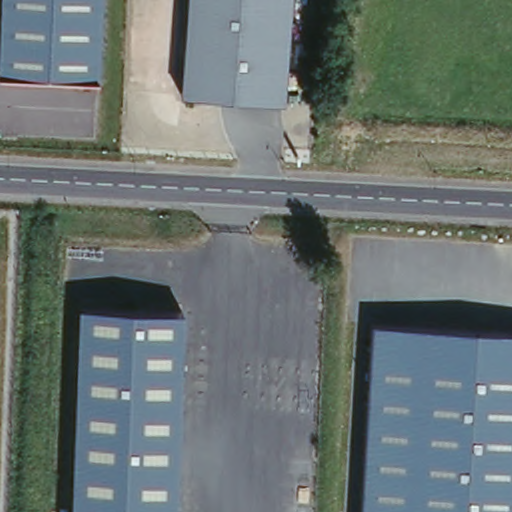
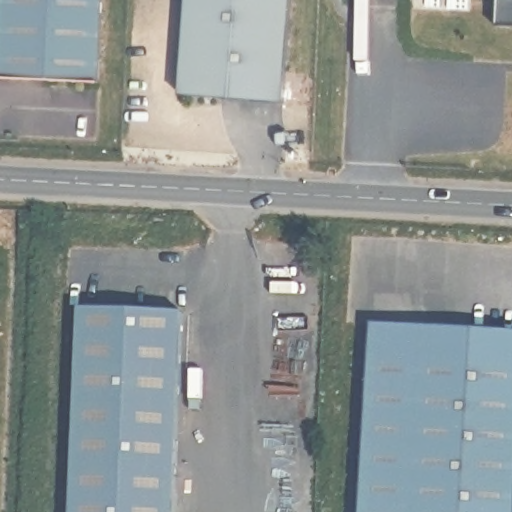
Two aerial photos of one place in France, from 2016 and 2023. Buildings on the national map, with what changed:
unchanged [(1,0),(104,0),(99,82),(0,73),(0,8),(1,0)]
unchanged [(184,0),(292,0),(286,102),(177,92),(184,0)]
new [(512,26),(495,26),(495,0),(512,0),(512,26)]
unchanged [(182,312),(176,512),(70,512),(75,309),(182,312)]
unchanged [(512,331),(512,512),(357,512),(368,321),(512,331)]

